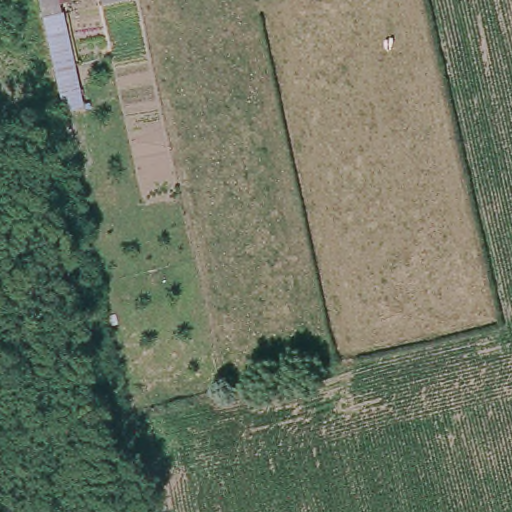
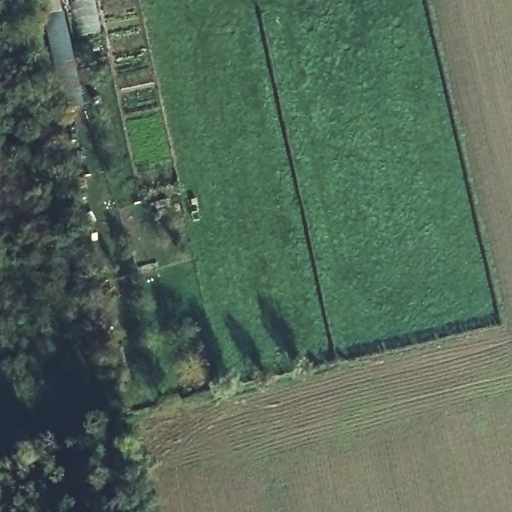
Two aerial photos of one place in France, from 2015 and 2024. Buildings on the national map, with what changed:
unchanged [(68,2),(41,8),(40,0),(68,0),(68,2)]

